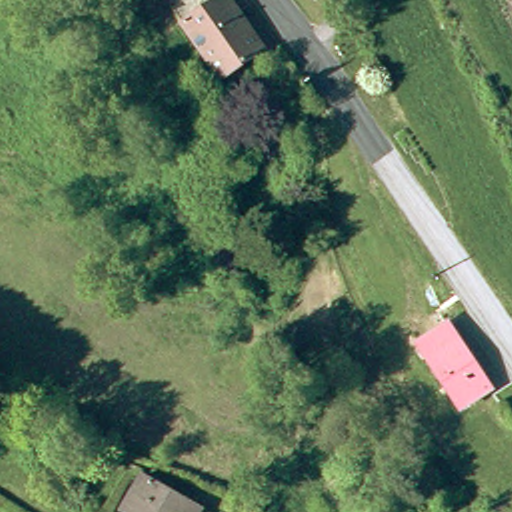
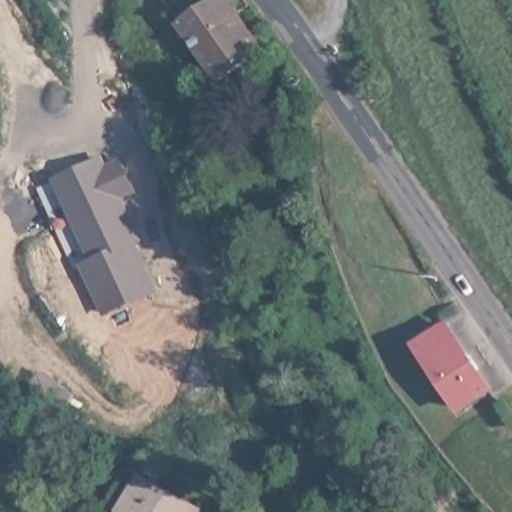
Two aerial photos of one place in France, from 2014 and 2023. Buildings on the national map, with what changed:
unchanged [(163,0),(208,0),(210,3),(181,24),(167,5),(163,0)]
unchanged [(216,0),(227,0),(265,52),(222,82),(181,24),(210,3),(216,0)]
new [(90,258),(55,178),(104,155),(110,166),(121,160),(137,191),(125,198),(144,239),(137,242),(160,291),(105,315),(80,263),(90,258)]
unchanged [(462,414),(428,365),(458,344),(492,394),(462,414)]
unchanged [(199,512),(129,512),(145,483),(199,512)]

